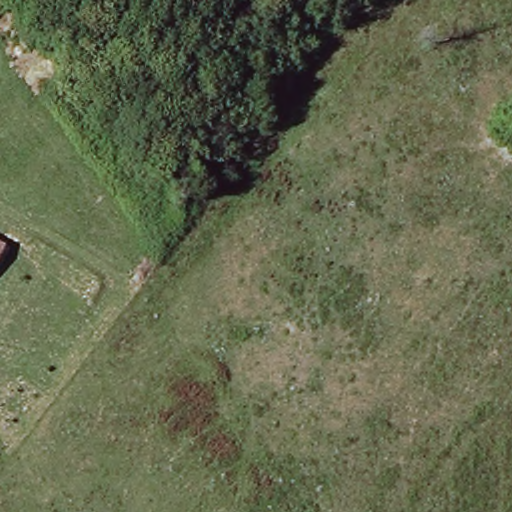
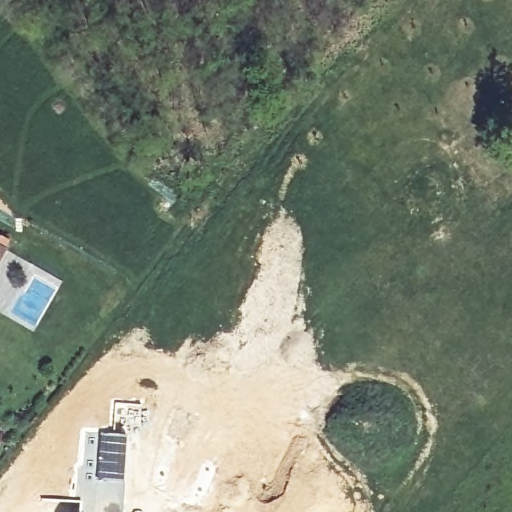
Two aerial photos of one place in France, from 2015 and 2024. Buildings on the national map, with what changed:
unchanged [(8,249),(0,263),(0,245),(8,249)]
new [(96,432),(125,434),(123,479),(93,480),(96,432)]

